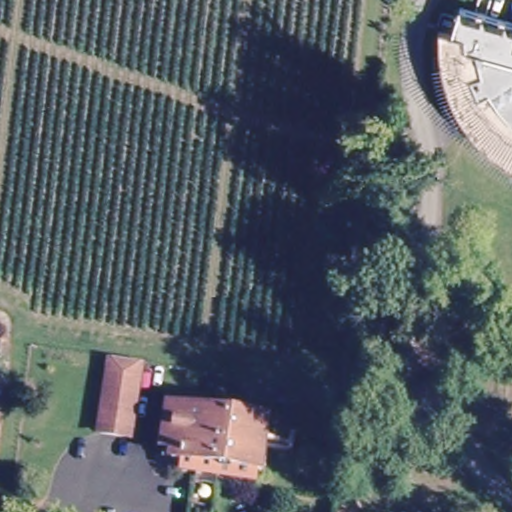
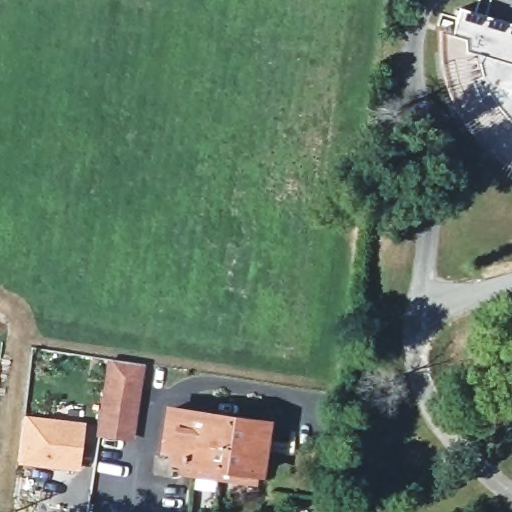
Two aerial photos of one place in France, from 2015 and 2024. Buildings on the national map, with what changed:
unchanged [(490,140),(470,116),(453,81),(448,60),(447,33),(455,8),(512,25),(512,159),(506,155),(490,140)]
unchanged [(453,81),(470,116),(490,140),(506,155),(512,159),(512,172),(499,164),(480,149),(463,128),(446,100),(440,83),(436,60),(435,44),(434,29),(447,33),(448,60),(453,81)]
unchanged [(137,364),(125,438),(95,434),(106,359),(137,364)]
unchanged [(266,419),(264,434),(257,478),(180,466),(182,456),(172,455),(173,445),(164,444),(165,437),(170,405),(266,419)]
new [(84,422),(79,470),(19,462),(25,415),(84,422)]

